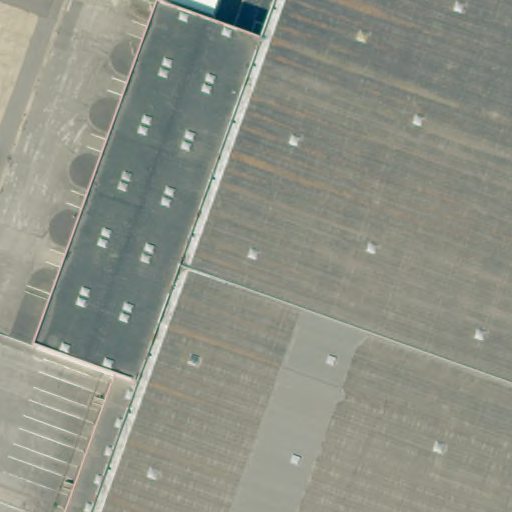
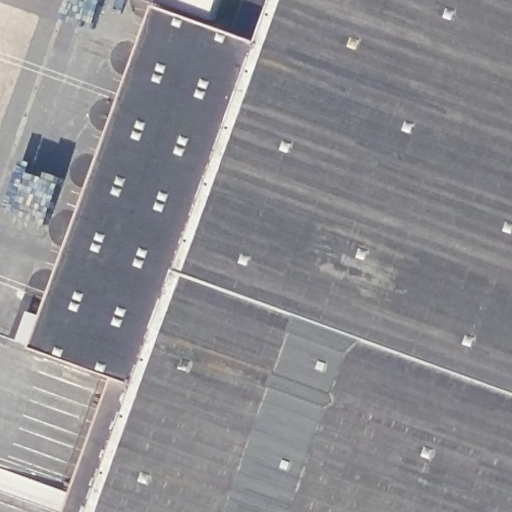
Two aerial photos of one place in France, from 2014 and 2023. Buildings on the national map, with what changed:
unchanged [(118,375),(39,346),(161,7),(234,34),(247,0),(512,0),(512,512),(69,512),(118,375)]
unchanged [(161,7),(145,0),(220,0),(211,25),(161,7)]

